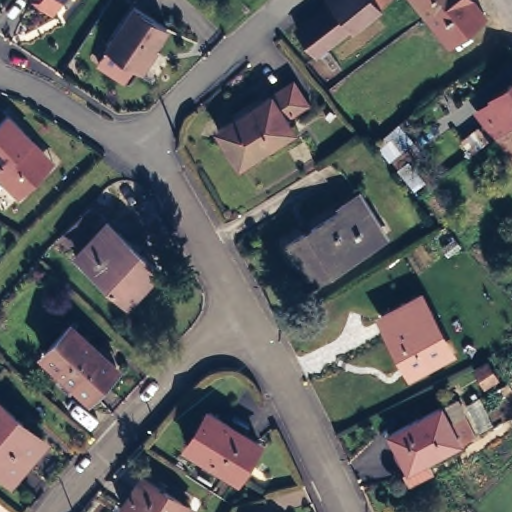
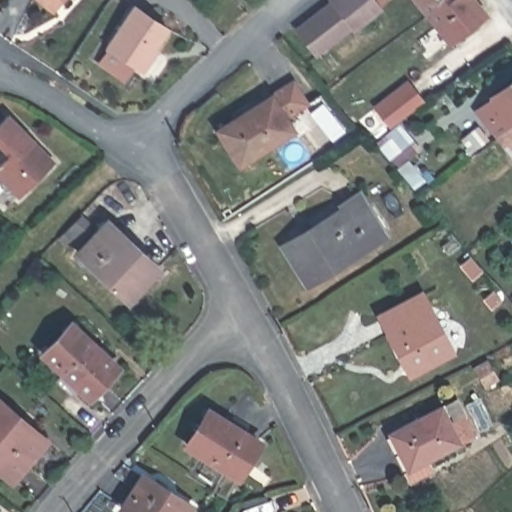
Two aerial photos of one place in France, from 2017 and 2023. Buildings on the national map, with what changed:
unchanged [(52,9),(42,0),(61,0),(52,9)]
unchanged [(338,0),(387,0),(377,8),(378,10),(316,59),(297,33),(338,0)]
unchanged [(418,0),(447,0),(429,13),(418,0)]
unchanged [(447,0),(470,0),(483,17),(450,41),(429,13),(447,0)]
unchanged [(167,28),(150,52),(152,53),(142,69),(107,45),(135,6),(167,28)]
new [(390,128),(372,106),(407,79),(425,101),(390,128)]
unchanged [(307,100),(287,114),(294,127),(239,159),(220,126),(294,80),(307,100)]
unchanged [(484,106),(500,93),(499,91),(512,81),(512,126),(504,133),(484,106)]
unchanged [(32,139),(53,161),(49,166),(18,195),(0,177),(0,123),(8,115),(32,139)]
unchanged [(512,126),(512,144),(504,133),(512,126)]
unchanged [(318,289),(294,251),(351,215),(347,209),(364,200),(392,242),(318,289)]
unchanged [(155,265),(127,296),(78,250),(107,219),(155,265)]
unchanged [(422,368),(394,313),(429,294),(457,349),(422,368)]
unchanged [(90,391),(46,349),(74,319),(118,361),(90,391)]
unchanged [(0,460),(0,394),(52,440),(22,477),(0,460)]
unchanged [(429,457),(435,469),(410,481),(404,471),(410,467),(392,431),(441,405),(452,424),(465,415),(474,433),(429,457)]
unchanged [(239,475),(185,445),(205,409),(259,440),(239,475)]
unchanged [(130,512),(127,510),(147,475),(197,505),(193,512),(130,512)]

